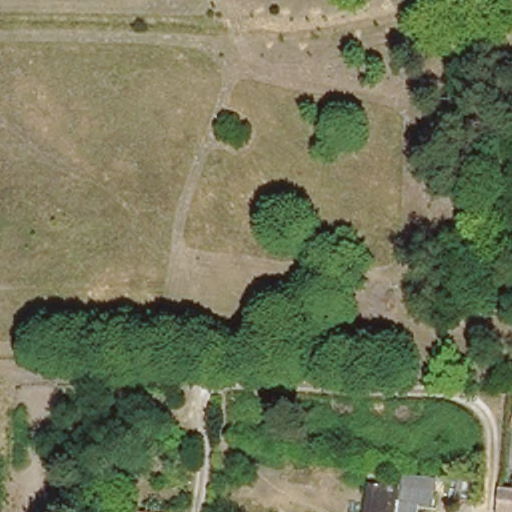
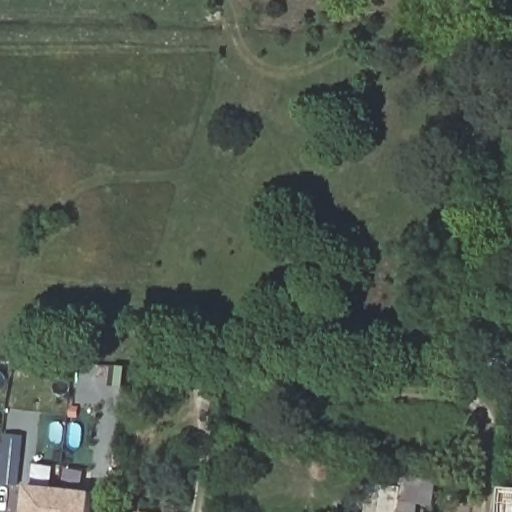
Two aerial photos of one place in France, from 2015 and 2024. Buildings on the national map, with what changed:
new [(3,435),(24,437),(19,486),(0,484),(0,461),(3,435)]
unchanged [(396,489),(397,487),(429,492),(427,505),(393,501),(391,512),(359,512),(363,483),(396,489)]
new [(92,491),(90,512),(23,512),(27,484),(92,491)]
unchanged [(499,485),(501,485),(512,486),(512,512),(496,512),(498,485),(499,485)]
unchanged [(127,495),(126,509),(116,508),(117,494),(127,495)]

